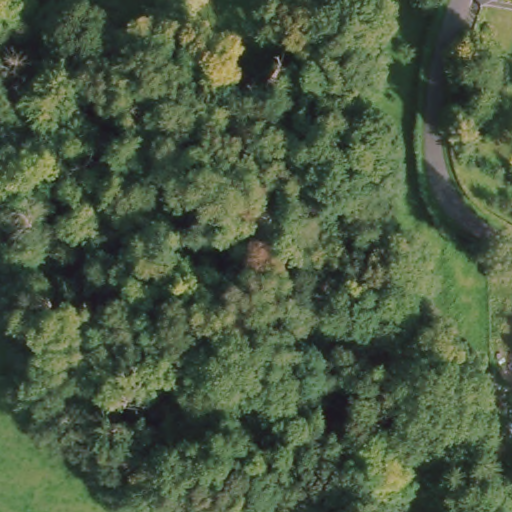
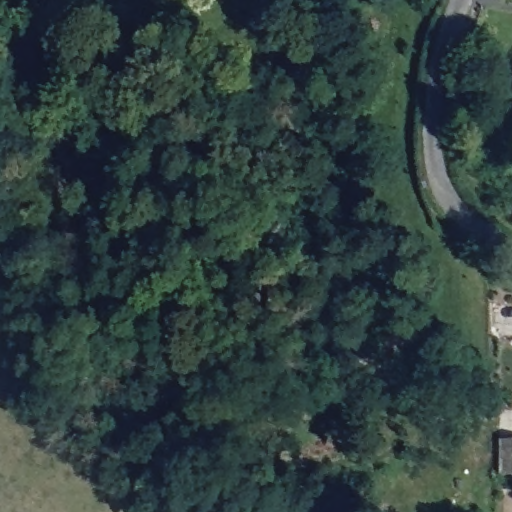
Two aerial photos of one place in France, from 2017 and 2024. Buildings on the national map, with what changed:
unchanged [(157,3),(158,0),(199,0),(195,14),(157,3)]
new [(512,439),(512,473),(499,472),(499,438),(512,439)]

